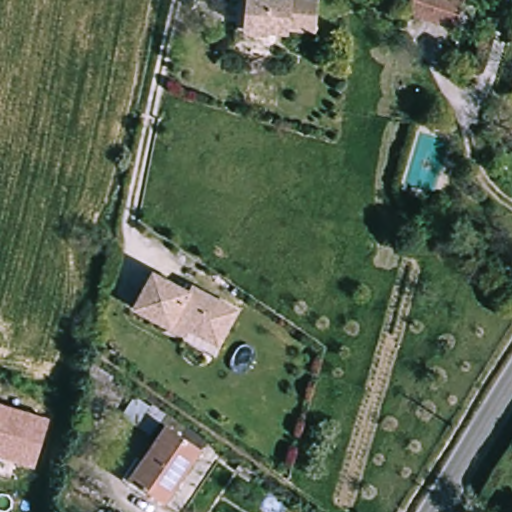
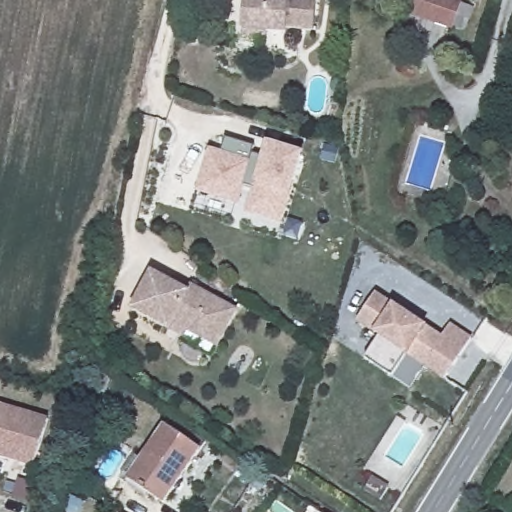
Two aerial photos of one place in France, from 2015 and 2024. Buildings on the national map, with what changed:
unchanged [(247,0),(290,0),(318,0),(316,28),(292,27),(291,34),(284,34),(284,41),(245,39),(245,32),(247,0)]
unchanged [(405,14),(410,0),(463,0),(452,31),(405,14)]
new [(222,157),(227,140),(256,148),(252,160),(265,164),(270,147),(303,156),(284,225),(251,216),(258,192),(245,189),(241,206),(202,195),(213,154),(222,157)]
unchanged [(210,339),(193,331),(170,320),(167,327),(132,311),(149,275),(187,293),(191,286),(239,308),(229,330),(222,345),(210,339)]
new [(388,377),(359,358),(374,335),(351,321),(369,292),(411,320),(418,325),(437,337),(445,325),(467,338),(441,378),(420,365),(405,388),(388,377)]
unchanged [(193,331),(189,338),(167,327),(170,320),(193,331)]
unchanged [(45,417),(30,465),(0,455),(0,403),(45,417)]
unchanged [(196,451),(161,506),(127,483),(160,428),(196,451)]

